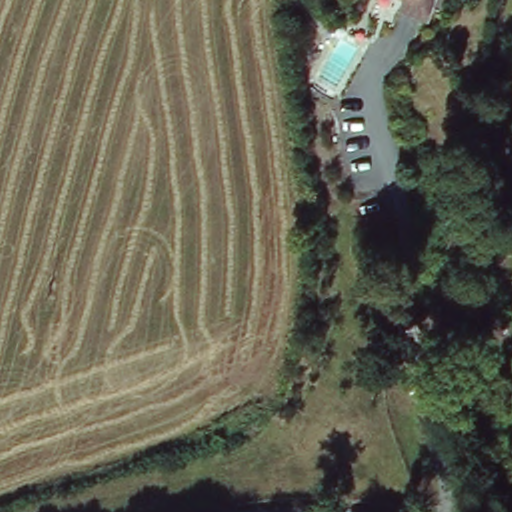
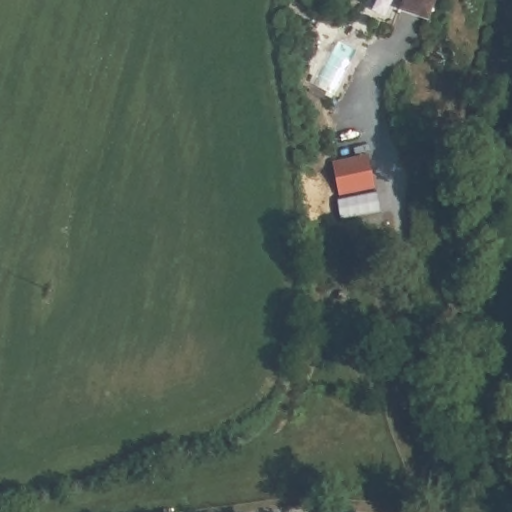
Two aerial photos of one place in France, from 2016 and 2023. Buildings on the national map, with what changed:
unchanged [(391,5),(393,0),(426,0),(420,15),(391,5)]
new [(369,154),(376,189),(338,195),(333,160),(369,154)]

